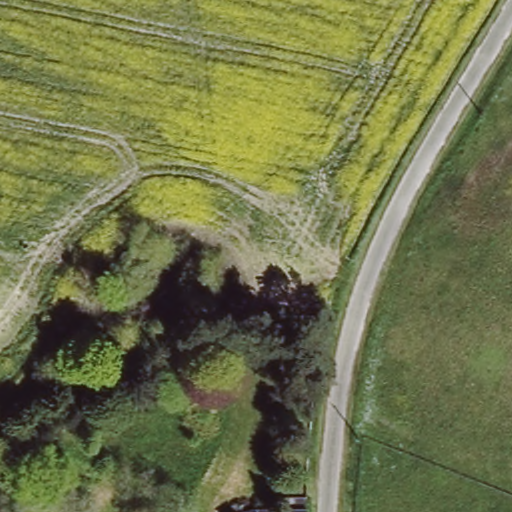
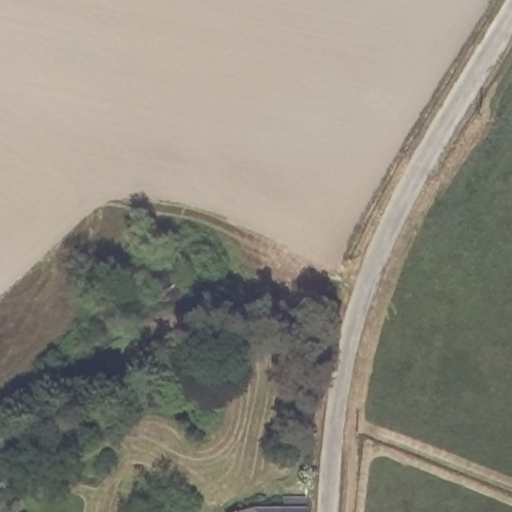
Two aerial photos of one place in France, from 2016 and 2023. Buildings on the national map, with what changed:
unchanged [(242,511),(260,512),(261,506),(287,506),(287,495),(310,494),(310,512),(239,512),(242,511)]

